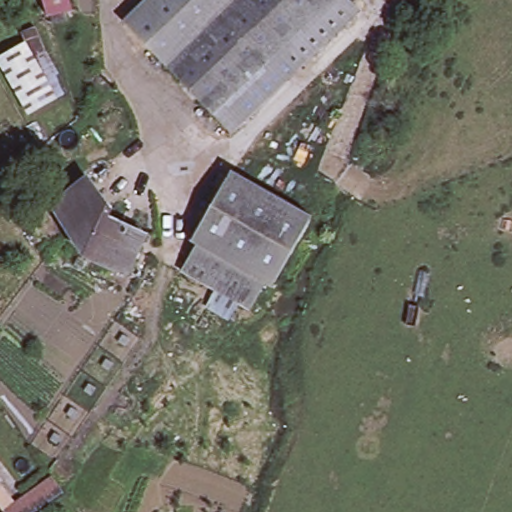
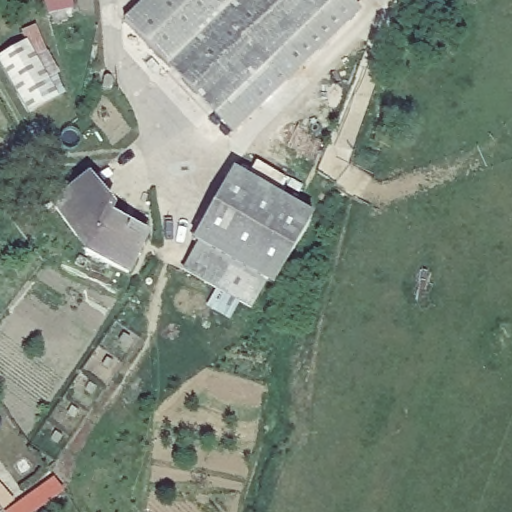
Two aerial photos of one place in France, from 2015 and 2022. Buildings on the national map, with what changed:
unchanged [(44,17),(41,0),(70,0),(73,10),(44,17)]
unchanged [(146,0),(237,0),(170,66),(125,21),(146,0)]
unchanged [(327,0),(269,56),(214,111),(170,66),(237,0),(327,0)]
unchanged [(8,66),(34,51),(29,40),(43,34),(54,59),(72,100),(64,104),(38,119),(8,66)]
unchanged [(231,128),(227,124),(214,111),(269,56),(283,70),(286,74),(231,128)]
unchanged [(231,168),(307,212),(268,282),(261,279),(196,242),(191,239),(231,168)]
unchanged [(88,175),(110,203),(103,211),(143,235),(124,272),(82,253),(87,242),(53,204),(88,175)]
unchanged [(249,303),(183,266),(196,242),(261,279),(249,303)]
unchanged [(63,493),(36,512),(2,512),(0,510),(0,486),(13,503),(51,476),(63,493)]

